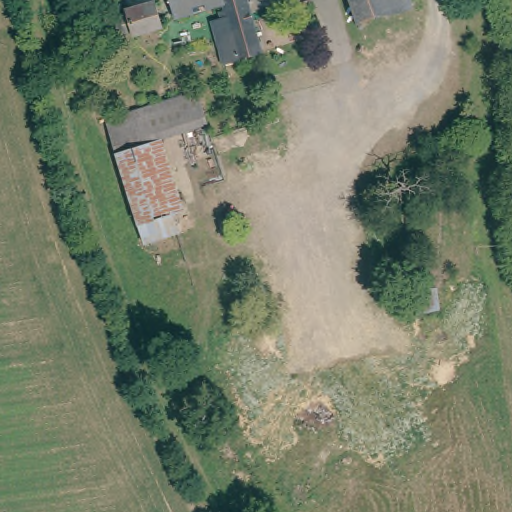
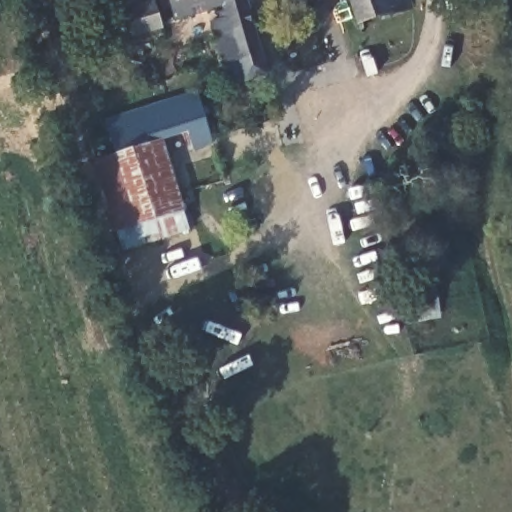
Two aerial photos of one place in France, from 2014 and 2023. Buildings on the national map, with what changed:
unchanged [(133,26),(128,22),(125,17),(126,10),(133,6),(149,0),(162,0),(171,25),(142,34),(140,25),(133,26)]
unchanged [(192,5),(176,10),(173,0),(212,0),(193,9),(192,5)]
unchanged [(226,56),(214,19),(225,16),(222,12),(224,9),(228,7),(226,0),(250,0),(264,45),(226,56)]
unchanged [(379,27),(362,32),(352,0),(408,0),(414,17),(379,27)]
unchanged [(107,114),(199,87),(209,122),(151,138),(116,147),(107,114)]
unchanged [(150,241),(143,221),(111,231),(91,156),(116,147),(151,138),(177,209),(183,229),(150,241)]

